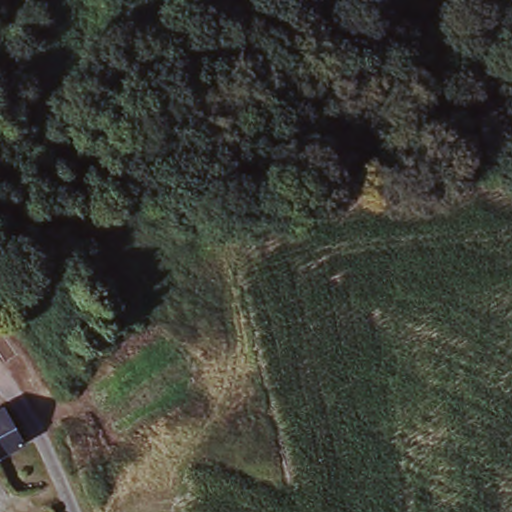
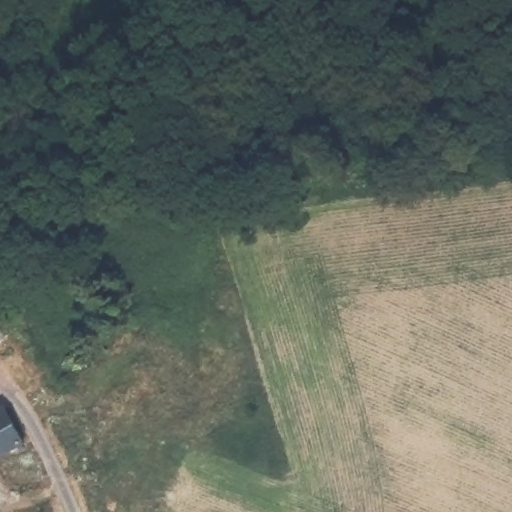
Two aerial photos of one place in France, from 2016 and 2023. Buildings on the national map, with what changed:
unchanged [(0,419),(5,416),(28,456),(0,471),(0,419)]

